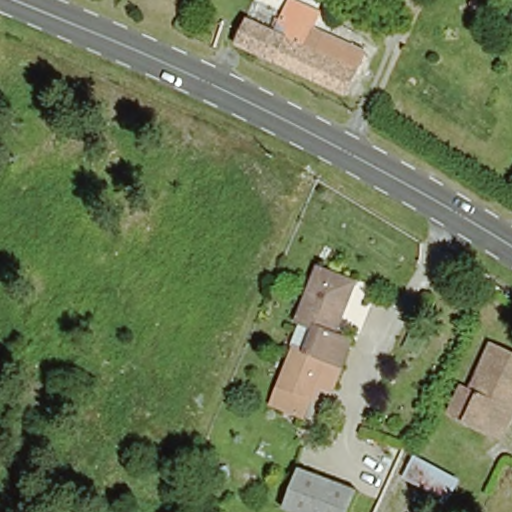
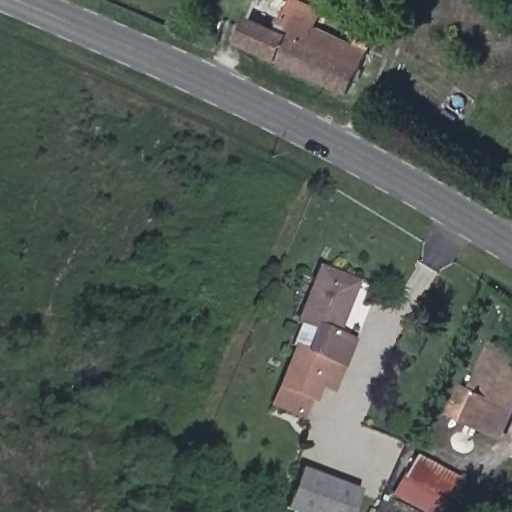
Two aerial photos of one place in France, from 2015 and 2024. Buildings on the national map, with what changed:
unchanged [(331,3),(333,0),(340,0),(358,10),(355,15),(346,30),(323,17),(331,3)]
unchanged [(254,22),(301,43),(311,25),(359,50),(341,89),(234,45),(247,19),(254,22)]
unchanged [(339,369),(322,362),(302,414),(274,403),(294,351),(299,353),(310,325),(293,319),(314,268),(355,284),(334,335),(350,341),(339,369)]
unchanged [(506,390),(498,407),(511,415),(500,437),(453,414),(466,387),(472,390),(494,344),(512,353),(512,393),(506,390)]
unchanged [(412,455),(460,478),(447,500),(400,475),(412,455)]
unchanged [(347,512),(302,512),(287,507),(300,465),(355,486),(347,512)]

